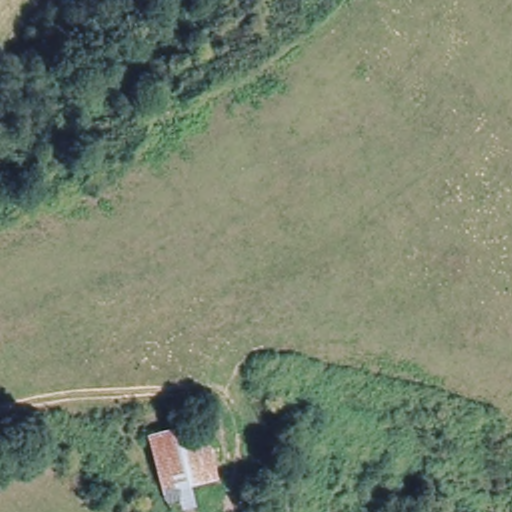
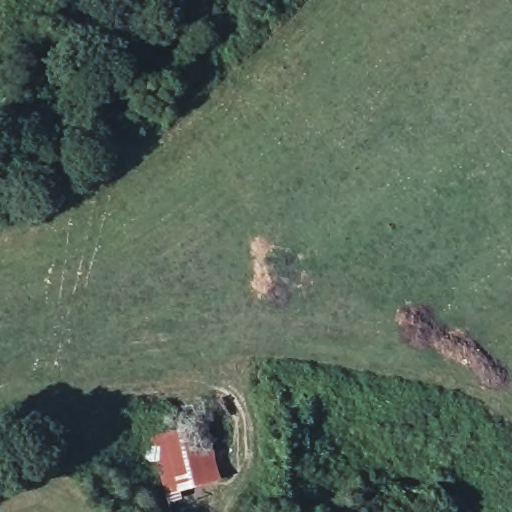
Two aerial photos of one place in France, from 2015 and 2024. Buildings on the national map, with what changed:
unchanged [(205,416),(219,471),(191,479),(196,501),(167,508),(150,434),(205,416)]

